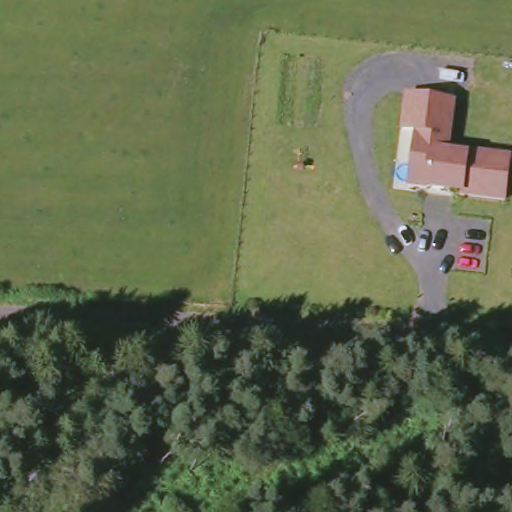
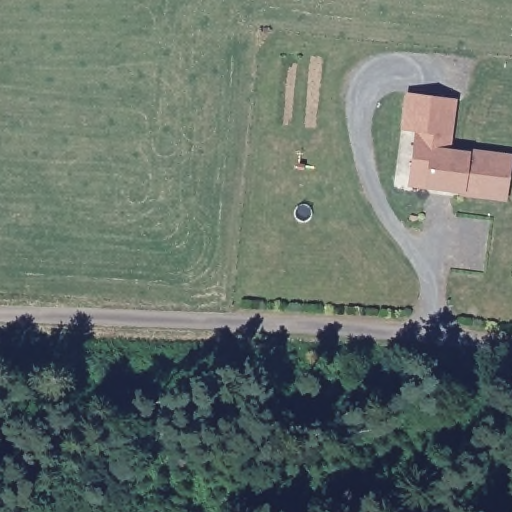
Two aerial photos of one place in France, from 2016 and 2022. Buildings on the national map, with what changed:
unchanged [(411,163),(416,127),(402,125),(407,91),(454,97),(447,146),(466,149),(467,146),(510,152),(505,196),(461,191),(461,189),(426,184),(409,181),(411,163)]

